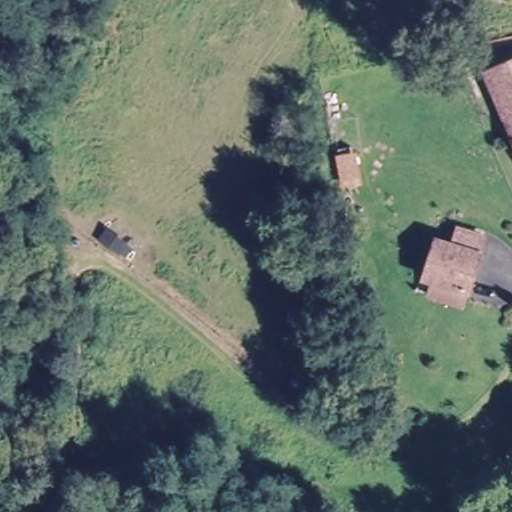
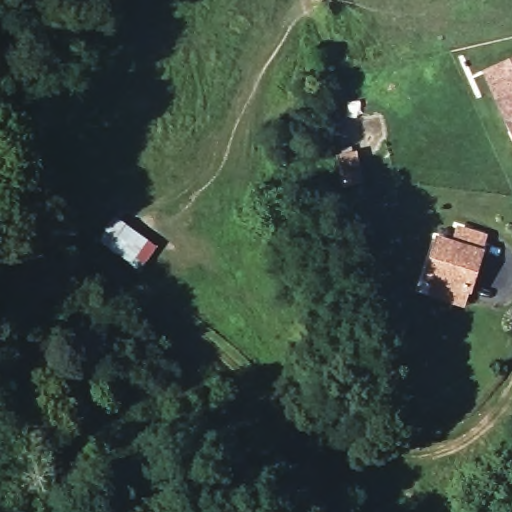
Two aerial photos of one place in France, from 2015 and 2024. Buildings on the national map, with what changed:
unchanged [(512,63),(512,129),(487,74),(512,63)]
unchanged [(430,290),(435,276),(426,273),(437,236),(453,241),(458,225),(485,234),(480,249),(469,286),(466,286),(462,300),(430,290)]
unchanged [(120,254),(119,255),(100,241),(106,231),(126,245),(125,245),(133,251),(127,259),(120,254)]

